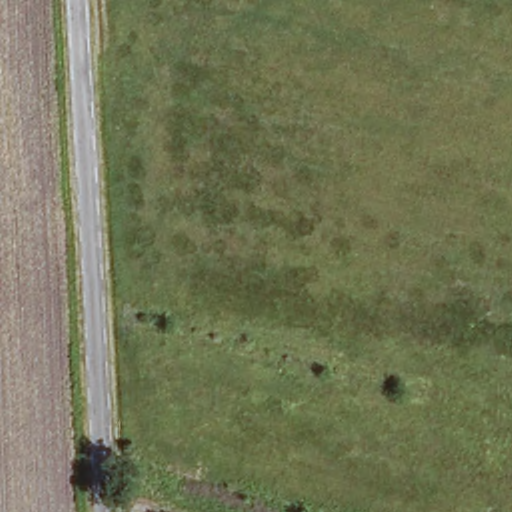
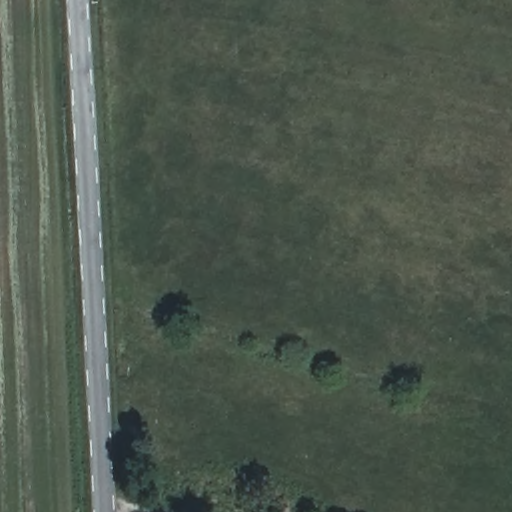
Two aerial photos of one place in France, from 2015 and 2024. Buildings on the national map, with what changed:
[]

